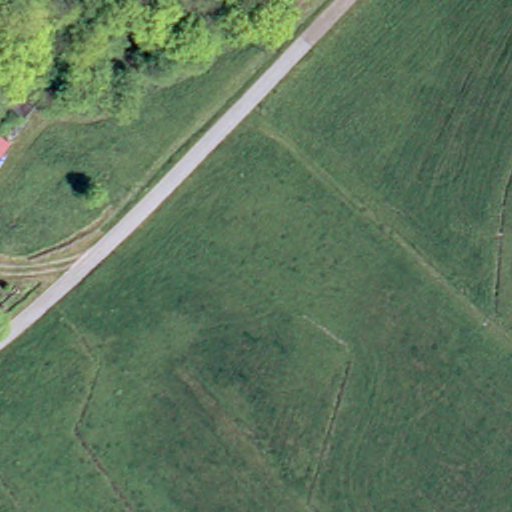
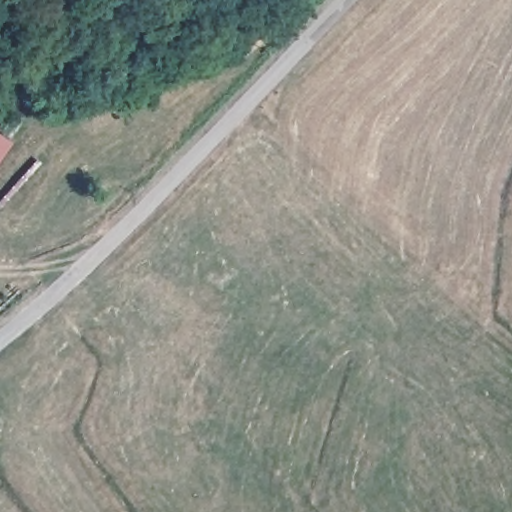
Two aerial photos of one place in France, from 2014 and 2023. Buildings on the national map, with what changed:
unchanged [(0,91),(0,88),(20,68),(35,85),(13,106),(0,91)]

